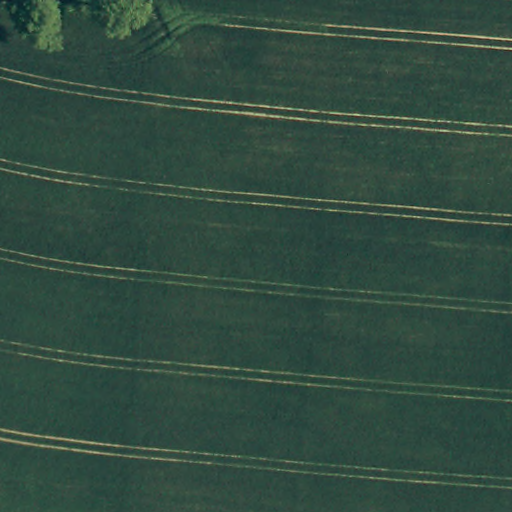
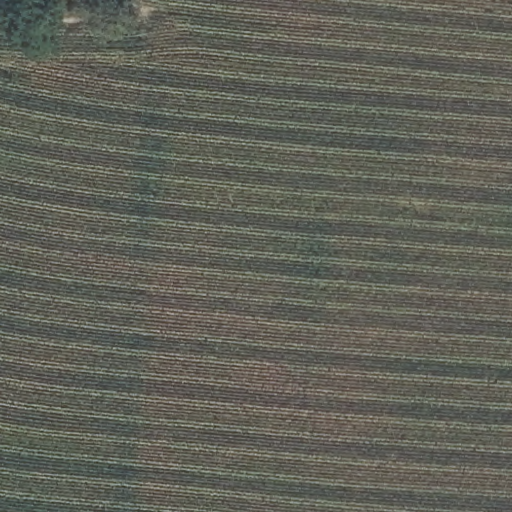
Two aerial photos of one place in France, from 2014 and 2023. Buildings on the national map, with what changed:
[]

